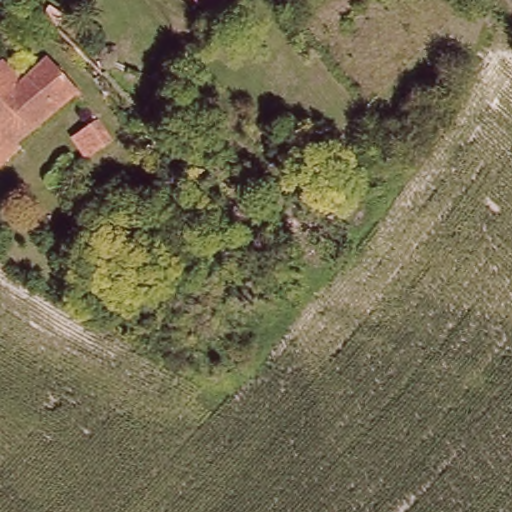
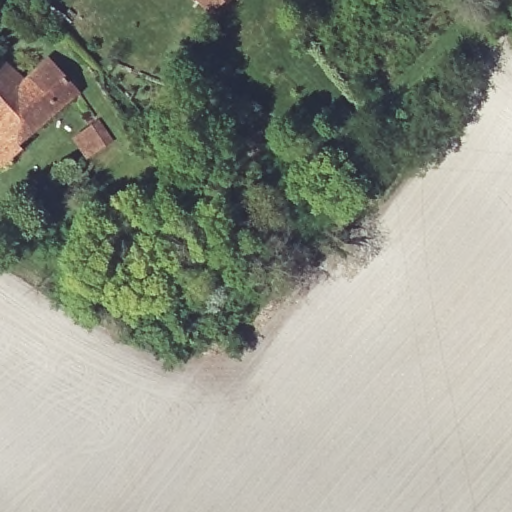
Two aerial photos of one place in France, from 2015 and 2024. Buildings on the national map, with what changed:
unchanged [(226,0),(212,12),(201,0),(226,0)]
unchanged [(24,150),(2,166),(0,163),(0,63),(3,60),(25,81),(48,61),(77,90),(22,145),(24,150)]
unchanged [(90,156),(74,136),(97,119),(112,139),(90,156)]

